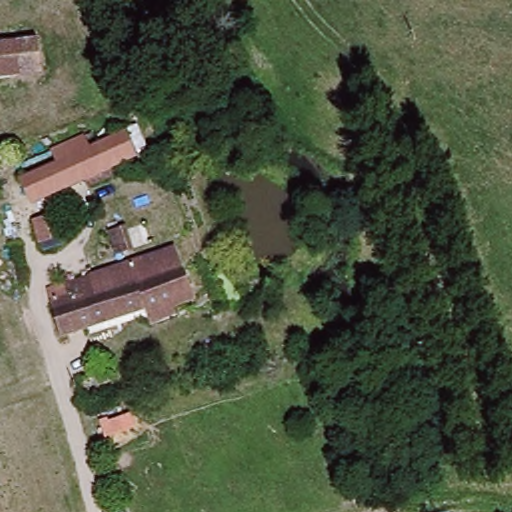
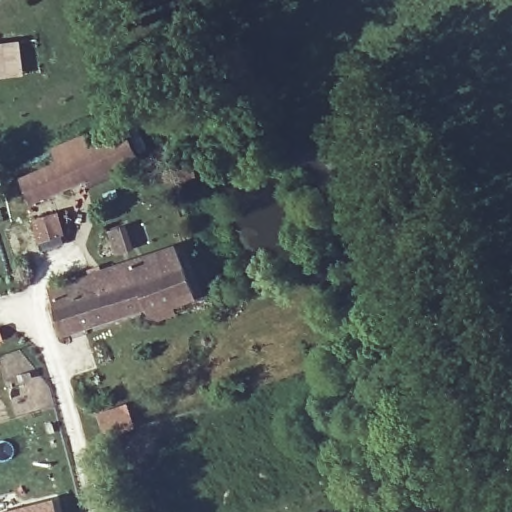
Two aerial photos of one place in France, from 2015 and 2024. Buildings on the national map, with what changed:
unchanged [(42,67),(0,77),(0,46),(34,40),(42,67)]
unchanged [(134,159),(31,205),(20,178),(34,173),(27,158),(49,150),(56,161),(122,134),(134,159)]
unchanged [(44,216),(54,245),(39,251),(28,221),(44,216)]
unchanged [(60,329),(52,296),(66,291),(63,277),(175,247),(191,299),(143,312),(141,307),(63,328),(60,329)]
new [(54,497),(58,512),(0,512),(54,497)]

